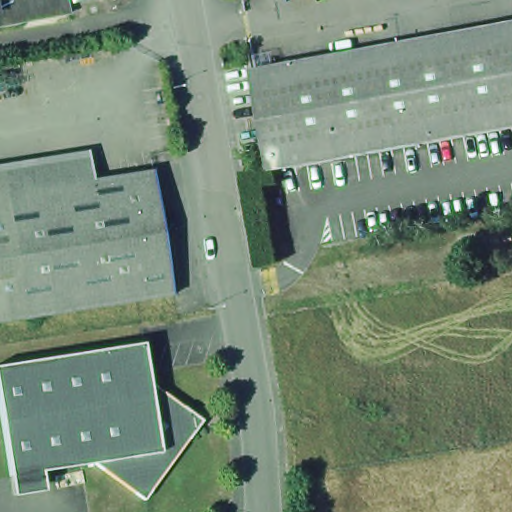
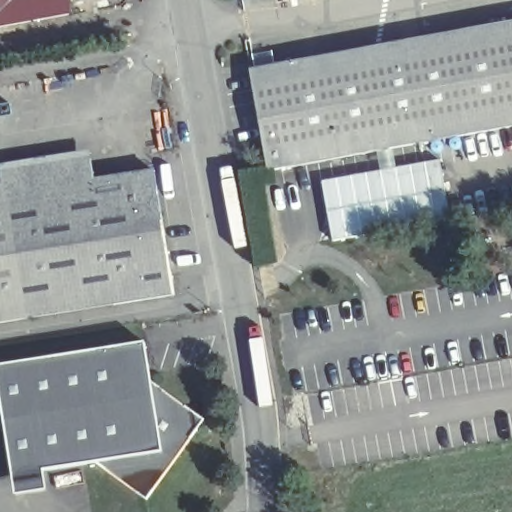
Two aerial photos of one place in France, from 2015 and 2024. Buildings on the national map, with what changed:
unchanged [(2,8),(0,8),(0,0),(10,0),(10,1),(2,8)]
unchanged [(0,25),(0,8),(2,8),(10,1),(10,0),(66,0),(68,13),(0,25)]
unchanged [(251,69),(512,22),(512,126),(270,169),(251,69)]
unchanged [(0,167),(88,154),(92,183),(1,197),(0,198),(0,167)]
new [(441,162),(452,219),(329,240),(319,183),(441,162)]
unchanged [(92,183),(150,174),(169,295),(22,318),(1,197),(92,183)]
unchanged [(22,318),(0,322),(0,198),(1,197),(22,318)]
unchanged [(198,427),(146,494),(97,457),(58,464),(49,414),(39,356),(150,339),(153,378),(197,405),(198,427)]
unchanged [(16,470),(0,365),(0,362),(39,356),(49,414),(58,464),(45,465),(48,485),(19,489),(16,470)]

